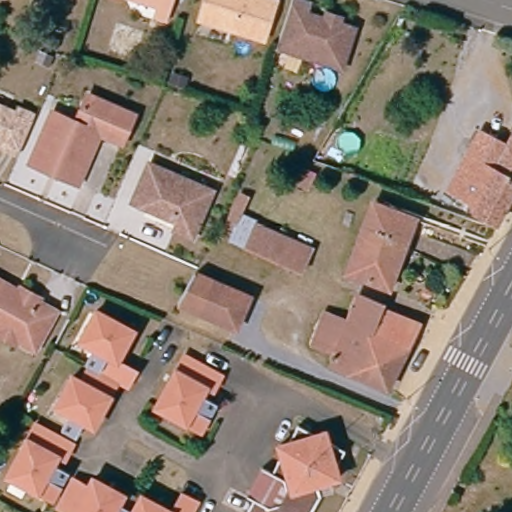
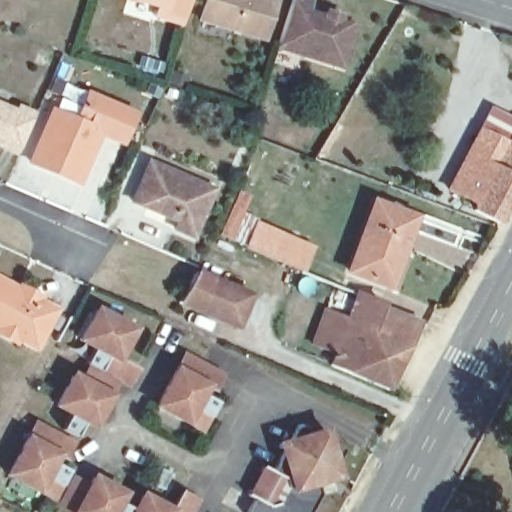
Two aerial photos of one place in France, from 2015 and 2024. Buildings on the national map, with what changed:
unchanged [(150,16),(153,6),(134,0),(168,0),(164,10),(161,19),(150,16)]
unchanged [(264,40),(202,22),(209,0),(277,0),(264,40)]
unchanged [(343,67),(279,45),(293,0),(302,0),(309,2),(307,11),(325,17),(328,11),(342,16),(340,22),(355,27),(343,67)]
unchanged [(130,116),(118,142),(96,132),(74,184),(26,163),(49,112),(73,122),(84,96),(130,116)]
unchanged [(35,115),(18,155),(1,147),(3,142),(0,141),(0,105),(16,112),(18,107),(35,115)]
unchanged [(474,202),(447,189),(471,144),(479,129),(504,142),(512,128),(512,189),(494,223),(493,223),(470,211),(474,202)]
unchanged [(214,192),(193,238),(175,231),(179,222),(133,202),(150,164),(214,192)]
unchanged [(245,244),(221,235),(241,191),(250,195),(242,212),(256,220),(256,221),(312,246),(301,271),(245,246),(245,244)]
unchanged [(388,286),(348,271),(374,202),(415,217),(388,286)]
unchanged [(250,295),(236,327),(179,302),(196,272),(250,295)]
unchanged [(57,311),(36,350),(17,339),(14,345),(0,337),(0,330),(0,279),(57,311)]
unchanged [(381,308),(419,322),(409,345),(388,388),(332,366),(336,356),(333,355),(313,347),(325,313),(345,321),(348,322),(358,296),(382,305),(381,308)]
unchanged [(62,430),(71,412),(58,405),(74,376),(82,380),(89,366),(85,363),(95,347),(82,339),(97,310),(133,330),(118,358),(137,369),(127,387),(117,381),(94,425),(85,420),(76,437),(62,430)]
unchanged [(217,373),(209,390),(201,386),(197,394),(213,402),(198,431),(153,406),(182,353),(217,373)]
unchanged [(74,442),(65,458),(57,454),(53,462),(69,471),(54,499),(9,475),(37,422),(74,442)]
unchanged [(333,476),(311,482),(316,495),(307,512),(242,512),(250,498),(242,493),(258,466),(269,472),(278,455),(275,445),(285,442),(294,425),(311,434),(320,432),(323,440),(340,450),(331,467),(333,476)]
unchanged [(89,487),(94,477),(123,494),(119,502),(135,511),(143,496),(172,511),(182,492),(200,502),(194,512),(72,512),(61,506),(58,505),(73,477),(76,480),(89,487)]

